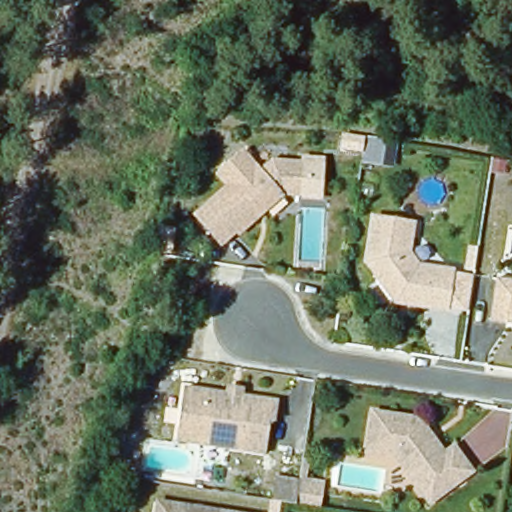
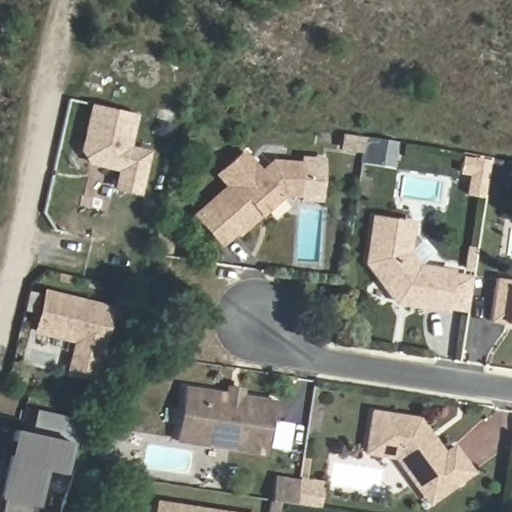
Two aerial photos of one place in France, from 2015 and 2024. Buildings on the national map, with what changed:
new [(151,149),(140,194),(113,188),(117,170),(89,164),(80,150),(91,103),(138,113),(131,145),(151,149)]
new [(373,163),(363,161),(366,138),(398,144),(397,153),(395,166),(373,163)]
unchanged [(245,234),(242,231),(227,245),(201,214),(234,186),(224,174),(250,152),(267,171),(280,160),(310,163),(307,195),(291,194),(267,214),(260,221),(245,234)]
unchanged [(412,227),(408,256),(418,270),(452,274),(447,313),(398,306),(368,267),(374,222),(412,227)]
unchanged [(497,281),(512,283),(512,327),(491,324),(497,281)]
new [(96,382),(66,375),(73,342),(33,333),(43,289),(114,305),(96,382)]
unchanged [(232,387),(245,389),(244,397),(282,402),(279,419),(274,419),(269,453),(180,441),(188,389),(231,395),(232,387)]
unchanged [(425,494),(399,460),(369,456),(376,415),(422,422),(448,455),(457,448),(476,473),(451,493),(434,506),(425,494)]
new [(44,469),(37,505),(34,512),(2,512),(6,498),(0,496),(0,487),(6,460),(13,430),(70,441),(63,473),(44,469)]
unchanged [(334,512),(310,508),(289,505),(286,505),(289,485),(313,488),(314,485),(317,463),(323,464),(320,486),(338,488),(334,512)]
unchanged [(218,512),(158,512),(160,503),(218,512)]

